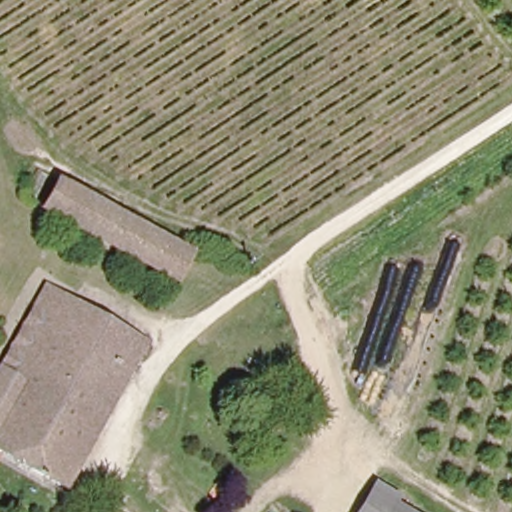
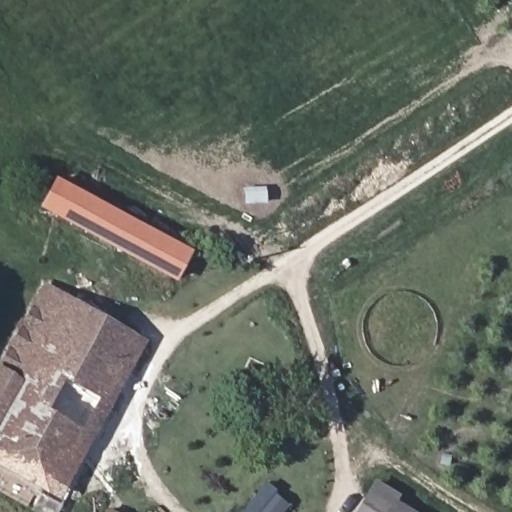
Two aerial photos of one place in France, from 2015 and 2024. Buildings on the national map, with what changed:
unchanged [(42,207),(57,179),(189,252),(175,281),(42,207)]
unchanged [(79,337),(124,359),(60,483),(0,450),(0,355),(40,283),(91,311),(79,337)]
unchanged [(134,336),(124,359),(79,337),(91,311),(134,336)]
new [(265,484),(289,504),(283,512),(241,512),(265,484)]
unchanged [(375,485),(419,512),(359,512),(375,485)]

